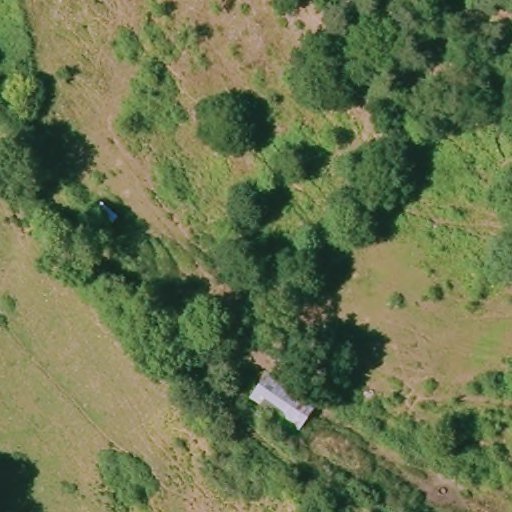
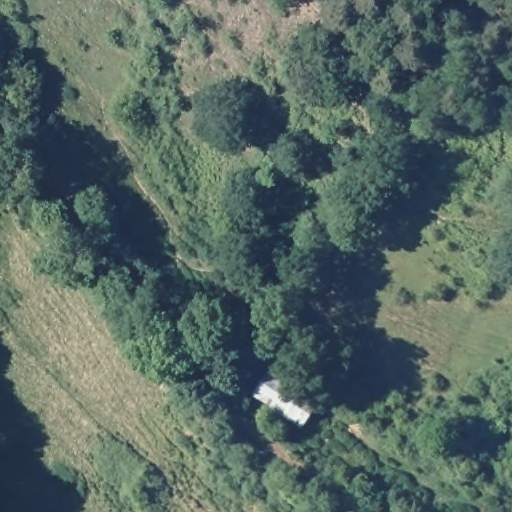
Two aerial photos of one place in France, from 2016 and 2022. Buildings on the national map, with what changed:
unchanged [(110,195),(129,211),(118,229),(99,213),(110,195)]

